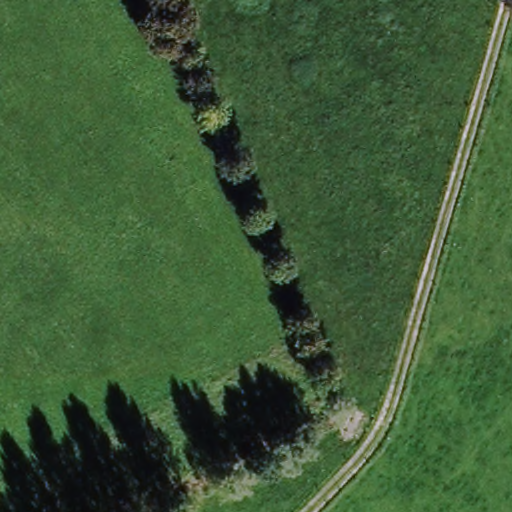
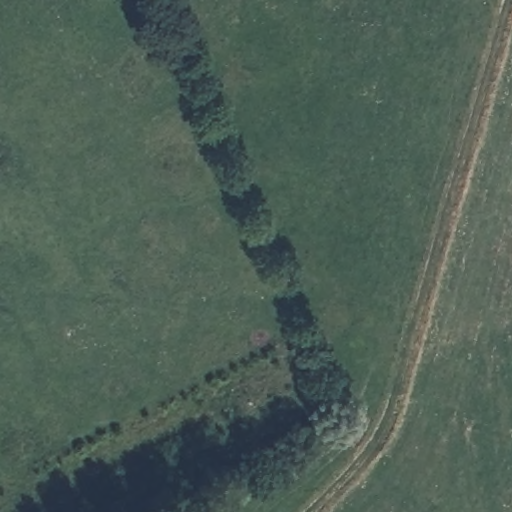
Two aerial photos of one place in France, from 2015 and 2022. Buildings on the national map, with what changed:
[]

